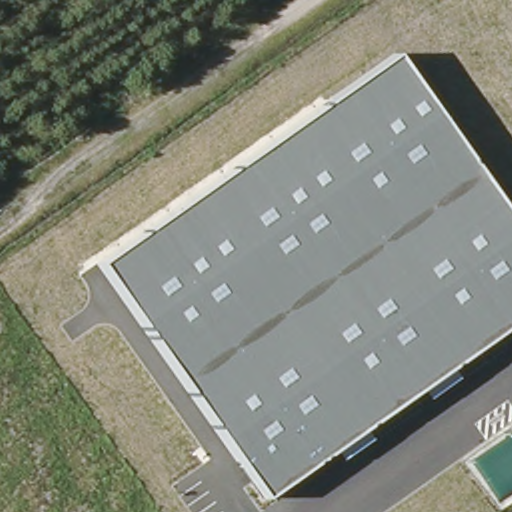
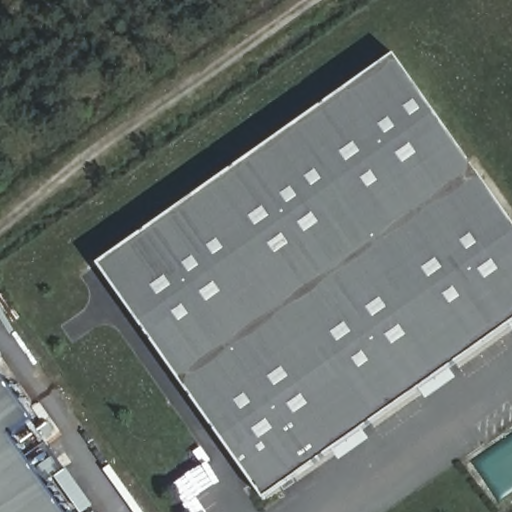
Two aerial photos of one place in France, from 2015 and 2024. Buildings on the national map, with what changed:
unchanged [(512,220),(512,325),(266,497),(101,264),(396,56),(512,220)]
new [(33,419),(13,434),(27,454),(49,439),(68,466),(46,481),(68,512),(0,512),(0,372),(33,419)]
new [(98,508),(101,512),(91,512),(98,508)]

